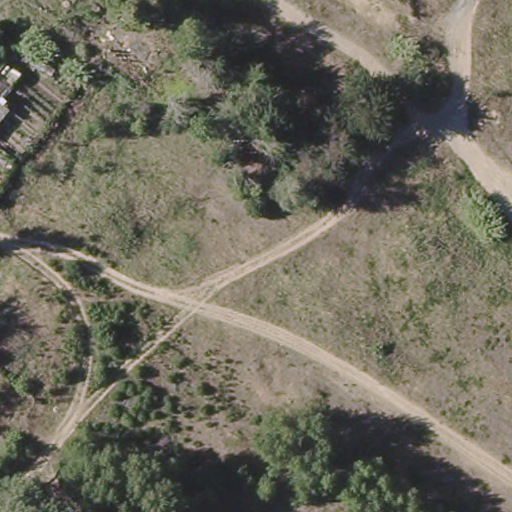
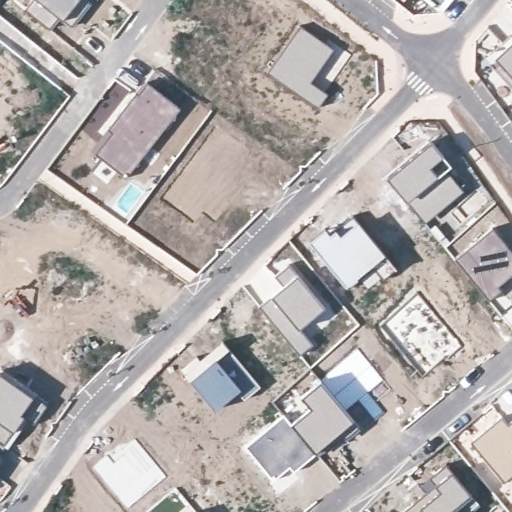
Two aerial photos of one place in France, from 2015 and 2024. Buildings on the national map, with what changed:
new [(72,26),(63,19),(59,16),(50,28),(26,9),(33,0),(87,0),(91,4),(72,26)]
new [(299,25),(336,46),(324,64),(318,72),(312,81),(328,93),(319,106),(268,73),(299,25)]
new [(509,34),(512,31),(512,37),(509,34)]
new [(512,39),(512,86),(490,62),(512,39)]
demolished [(23,64),(17,61),(21,53),(28,56),(23,64)]
unchanged [(0,69),(0,59),(5,63),(0,69)]
new [(111,124),(146,81),(181,108),(126,175),(93,151),(111,124)]
unchanged [(0,121),(0,101),(10,109),(0,121)]
new [(431,139),(452,166),(448,169),(464,193),(425,222),(385,176),(431,139)]
new [(334,225),(336,228),(353,215),(395,268),(369,287),(360,275),(346,285),(311,240),(334,225)]
new [(494,225),(512,251),(512,276),(498,289),(500,290),(489,299),(455,256),(494,225)]
new [(273,275),(290,263),(297,273),(324,306),(299,328),(313,344),(300,354),(259,305),(281,285),(273,275)]
new [(227,346),(260,386),(245,399),(238,392),(216,411),(188,379),(227,346)]
new [(34,420),(28,416),(6,448),(0,443),(0,371),(37,396),(47,403),(34,420)]
new [(309,407),(301,396),(321,379),(331,392),(346,409),(354,420),(316,453),(291,422),(309,407)]
new [(284,414),(291,422),(316,453),(293,473),(289,469),(273,480),(245,446),(284,414)]
new [(480,432),(501,414),(508,422),(512,418),(512,476),(505,482),(469,440),(480,432)]
new [(421,496),(415,489),(446,464),(478,503),(468,511),(461,503),(453,509),(455,512),(403,512),(421,496)]
new [(193,509),(196,512),(191,512),(193,509)]

